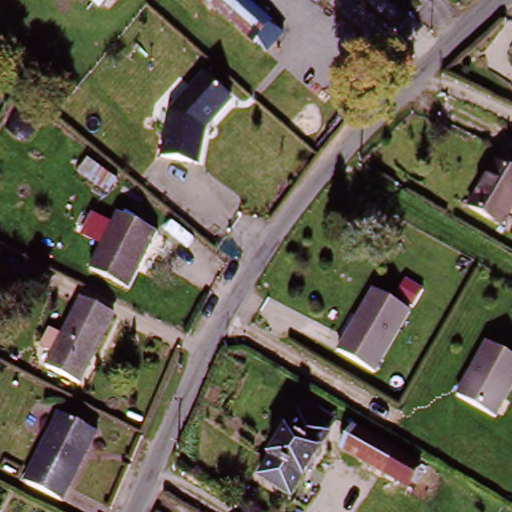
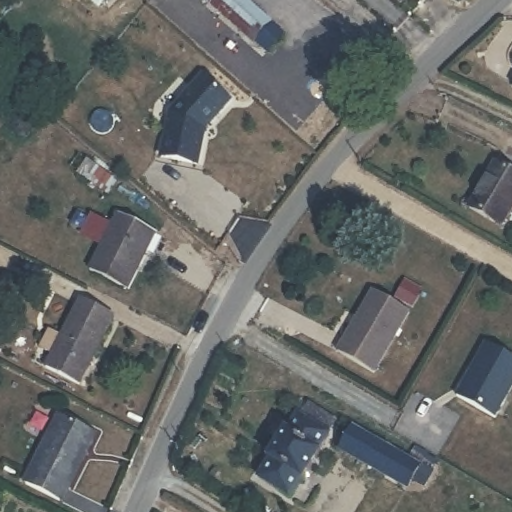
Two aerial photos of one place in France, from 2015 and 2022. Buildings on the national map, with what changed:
unchanged [(97,10),(85,0),(106,0),(97,10)]
unchanged [(204,0),(244,0),(281,31),(264,50),(204,0)]
unchanged [(229,100),(208,131),(201,169),(166,163),(171,118),(199,79),(229,100)]
unchanged [(471,211),(494,166),(512,176),(512,215),(504,229),(471,211)]
unchanged [(115,217),(149,235),(120,289),(86,272),(115,217)]
unchanged [(371,370),(334,351),(366,290),(404,309),(371,370)]
unchanged [(53,334),(63,335),(83,298),(114,316),(79,382),(46,364),(54,350),(47,347),(53,334)]
unchanged [(496,419),(457,399),(484,347),(512,361),(512,386),(496,419)]
unchanged [(444,512),(433,512),(334,446),(327,440),(291,499),(258,478),(299,411),(289,405),(300,389),(309,395),(349,422),(456,495),(474,508),(471,512),(452,512),(447,508),(444,512)]
unchanged [(23,486),(56,420),(90,437),(56,503),(23,486)]

